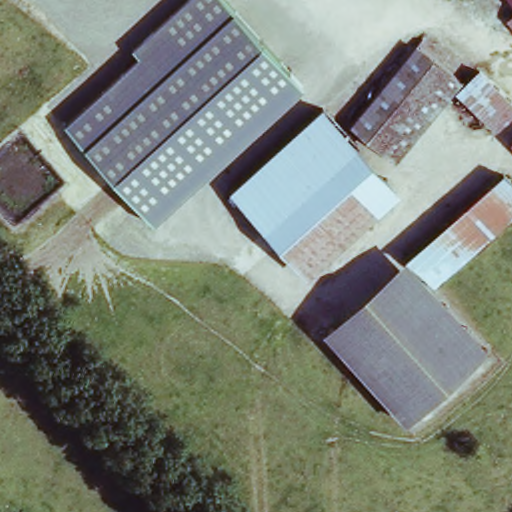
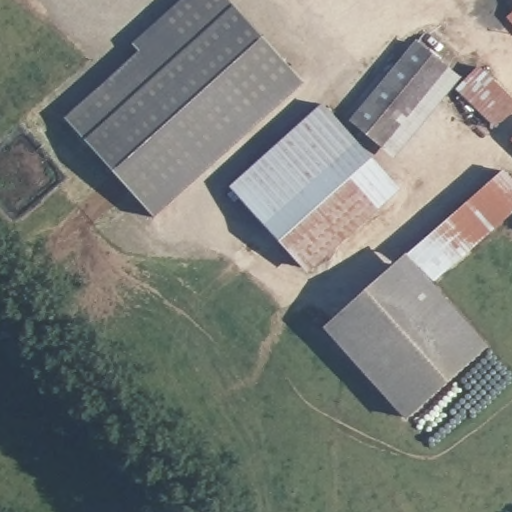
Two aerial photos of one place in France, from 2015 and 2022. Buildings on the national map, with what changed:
unchanged [(155,222),(64,122),(137,53),(131,45),(182,0),(229,0),(305,87),(155,222)]
unchanged [(508,0),(512,0),(512,5),(508,0)]
unchanged [(502,11),(512,5),(512,23),(502,11)]
unchanged [(463,80),(396,161),(351,121),(417,41),(463,80)]
unchanged [(461,94),(466,90),(488,74),(512,107),(512,118),(492,133),(461,94)]
unchanged [(297,265),(239,184),(337,110),(396,191),(297,265)]
unchanged [(507,169),(512,175),(512,235),(439,290),(406,245),(507,169)]
unchanged [(406,245),(439,290),(477,343),(391,408),(320,310),(406,245)]

